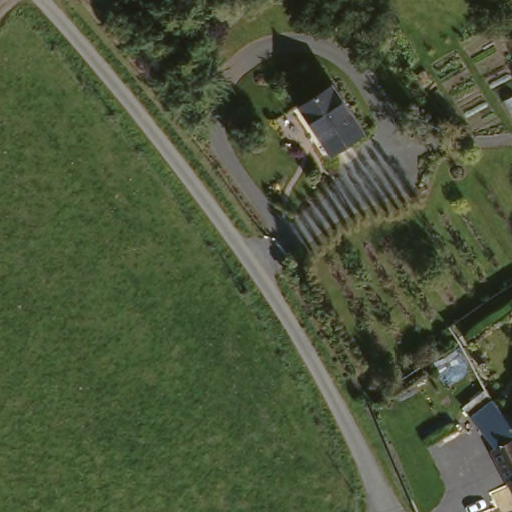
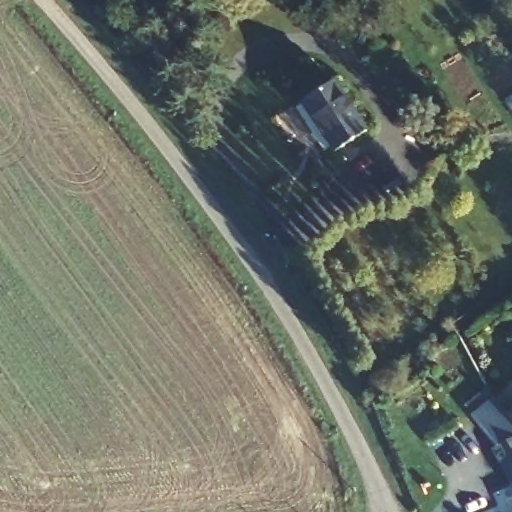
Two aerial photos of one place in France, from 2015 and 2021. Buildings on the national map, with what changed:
unchanged [(340,78),(373,125),(342,146),(308,100),(340,78)]
unchanged [(511,400),(512,402),(512,457),(505,442),(510,439),(481,395),(501,383),(511,400)]

